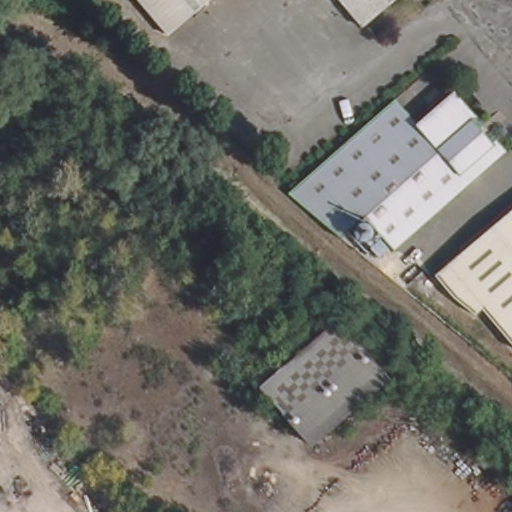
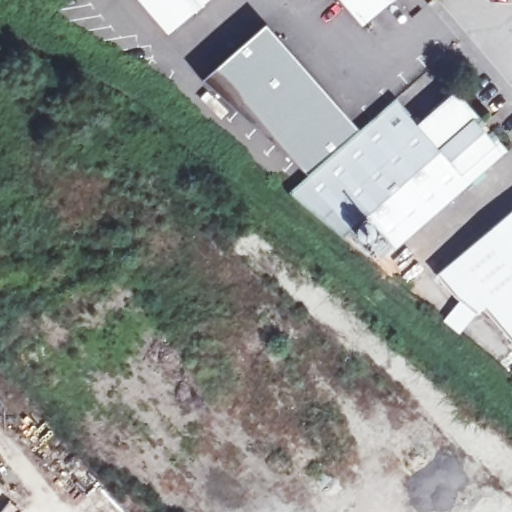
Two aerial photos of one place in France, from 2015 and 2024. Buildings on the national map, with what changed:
unchanged [(179,35),(150,0),(220,0),(179,35)]
unchanged [(373,27),(351,0),(405,0),(373,27)]
new [(308,177),(202,82),(265,25),(359,131),(308,177)]
unchanged [(417,122),(453,90),(506,151),(393,251),(377,231),(376,232),(376,231),(340,191),(417,122)]
unchanged [(308,177),(359,131),(395,98),(417,122),(340,191),(376,231),(376,232),(362,245),(350,231),(342,238),(290,193),(308,177)]
unchanged [(480,313),(458,297),(441,274),(512,214),(512,337),(487,308),(480,313)]
demolished [(333,312),(355,338),(281,402),(260,377),(333,312)]
demolished [(363,348),(367,345),(393,377),(385,384),(388,388),(383,392),(380,389),(366,401),(369,405),(365,409),(362,405),(347,417),(350,422),(346,425),(343,422),(328,434),(330,438),(326,442),(323,439),(315,445),(281,402),(355,338),(363,348)]

